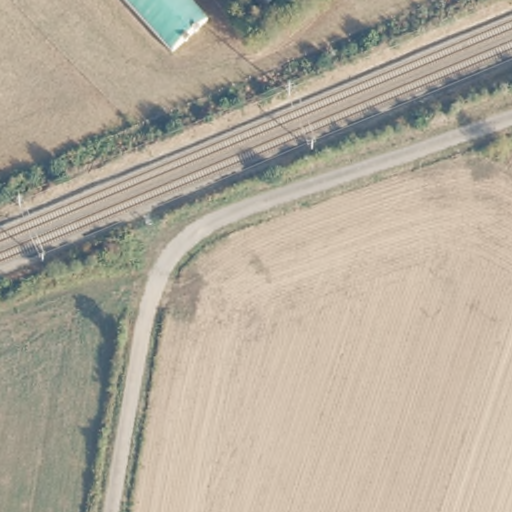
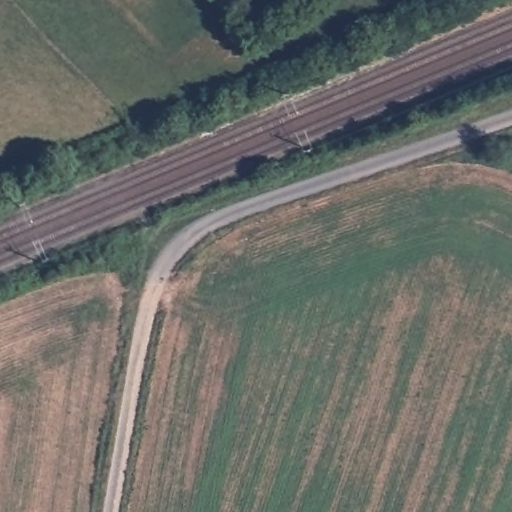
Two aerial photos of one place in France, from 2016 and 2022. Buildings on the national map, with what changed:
unchanged [(171,44),(131,0),(194,0),(206,13),(171,44)]
unchanged [(262,0),(265,0),(263,1),(262,0)]

